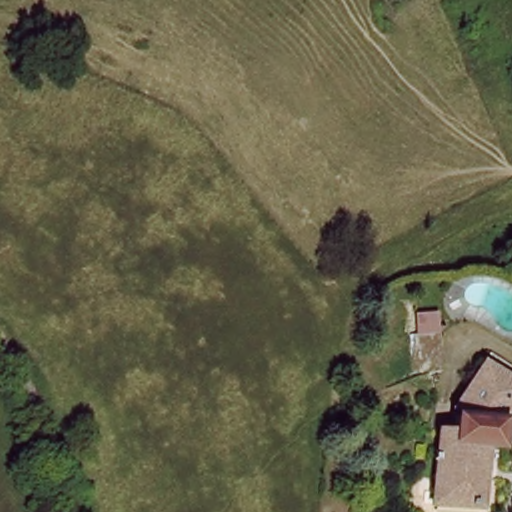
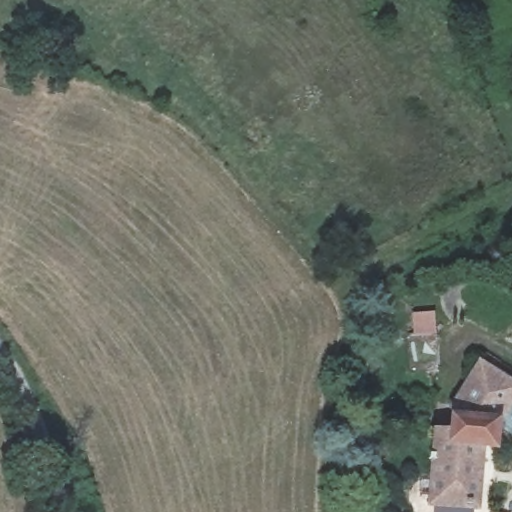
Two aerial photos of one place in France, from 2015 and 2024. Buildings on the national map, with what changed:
unchanged [(450,420),(456,394),(478,359),(512,379),(512,404),(501,421),(497,453),(485,450),(480,511),(429,507),(433,422),(450,420)]

